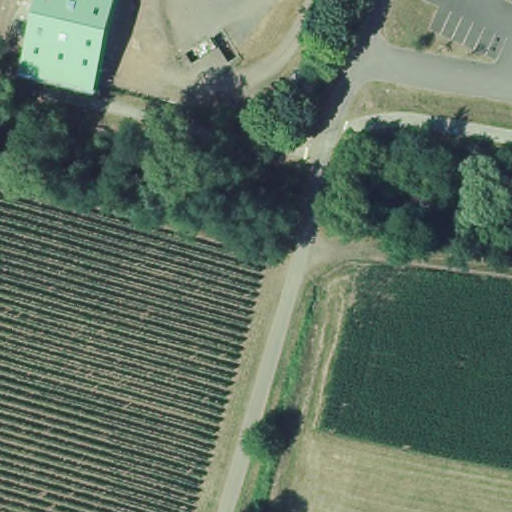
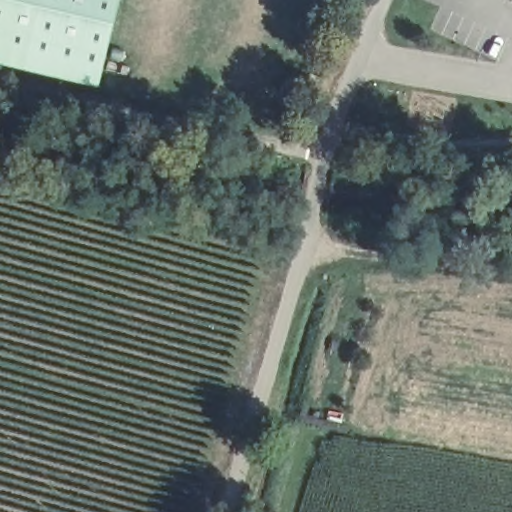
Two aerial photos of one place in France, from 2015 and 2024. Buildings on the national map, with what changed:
new [(0,0),(40,0),(24,73),(0,67),(0,0)]
unchanged [(24,73),(40,0),(120,0),(98,91),(24,73)]

